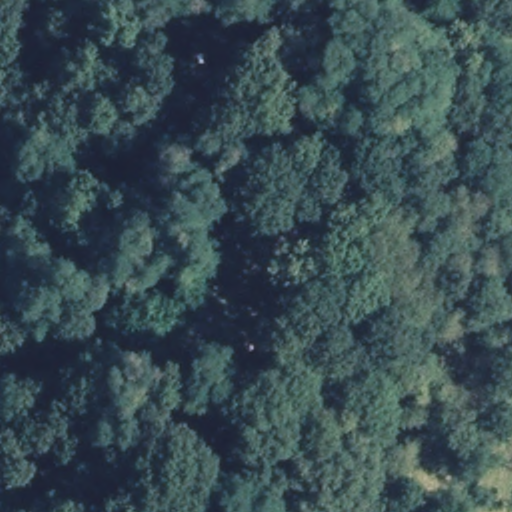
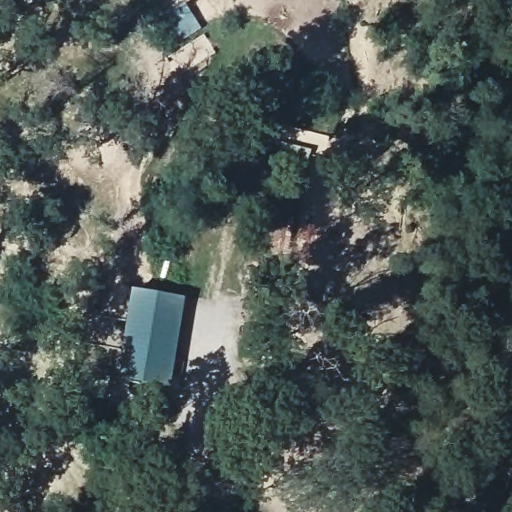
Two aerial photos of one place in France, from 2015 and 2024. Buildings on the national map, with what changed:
new [(188,298),(174,390),(119,381),(133,289),(188,298)]
demolished [(174,336),(177,392),(134,396),(130,341),(174,336)]

